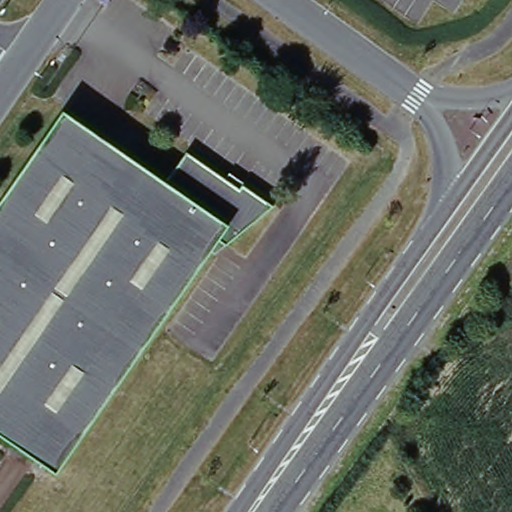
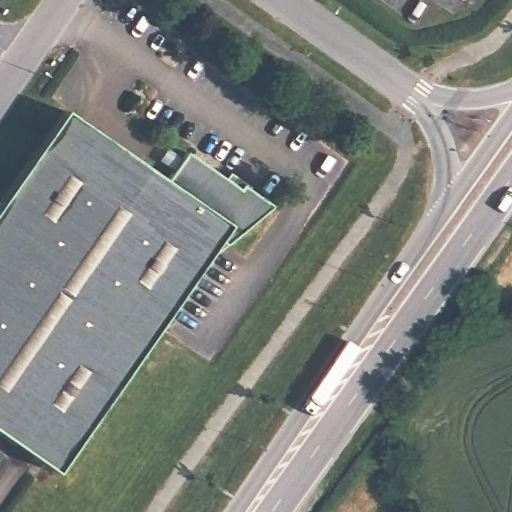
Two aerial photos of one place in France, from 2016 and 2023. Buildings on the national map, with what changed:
unchanged [(169,179),(189,152),(241,188),(245,182),(277,203),(231,244),(220,238),(61,473),(0,433),(0,203),(65,110),(169,179)]

